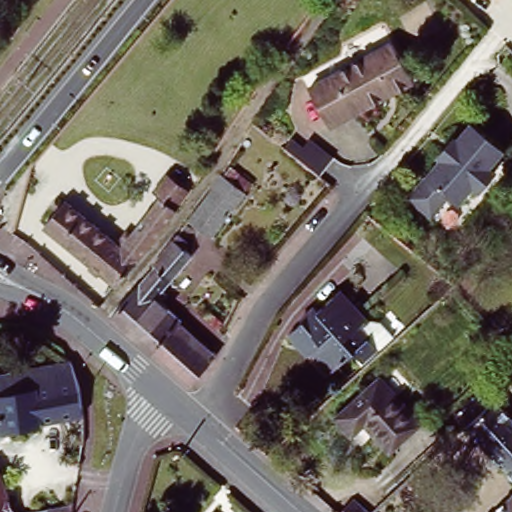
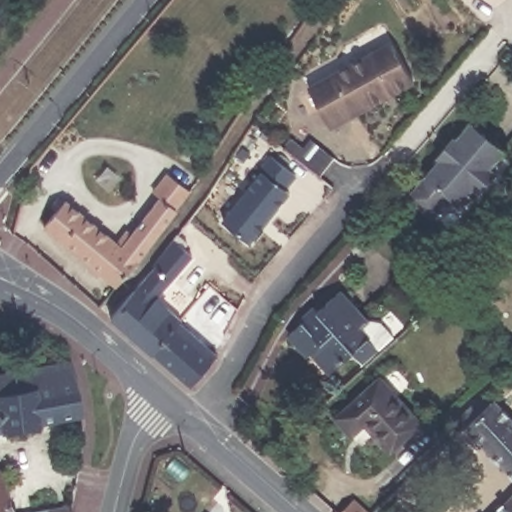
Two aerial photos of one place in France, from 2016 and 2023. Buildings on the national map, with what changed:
unchanged [(412,86),(394,94),(330,118),(315,79),(398,47),(412,86)]
unchanged [(490,167),(495,172),(478,192),(472,187),(457,204),(447,196),(430,215),(407,195),(440,158),(438,156),(455,136),(457,138),(471,123),(504,151),(490,167)]
new [(262,171),(259,170),(270,156),(294,176),(284,188),(289,192),(249,241),(222,220),(262,171)]
demolished [(184,231),(207,201),(223,175),(247,194),(205,248),(184,231)]
unchanged [(40,226),(53,210),(49,206),(55,199),(59,203),(60,201),(109,241),(112,236),(121,235),(124,238),(155,198),(154,196),(165,181),(184,196),(172,211),(114,287),(40,226)]
unchanged [(155,268),(153,266),(174,240),(195,257),(165,291),(170,296),(164,303),(184,321),(182,323),(212,350),(220,356),(192,388),(112,317),(155,268)]
unchanged [(325,379),(301,352),(292,354),(282,343),(296,331),(294,328),(307,316),(308,316),(312,320),(334,300),(359,328),(374,331),(387,346),(359,370),(349,358),(325,379)]
unchanged [(0,439),(0,375),(68,363),(70,366),(77,389),(80,416),(3,430),(5,438),(0,439)]
unchanged [(391,455),(365,427),(350,440),(327,417),(380,375),(422,425),(391,455)]
unchanged [(473,421),(466,414),(487,394),(494,401),(495,400),(512,417),(512,474),(467,428),(473,421)]
unchanged [(0,472),(13,512),(0,512),(0,472)]
unchanged [(350,499),(365,512),(337,512),(350,499)]
unchanged [(511,499),(512,500),(512,512),(497,512),(511,499)]
unchanged [(67,508),(68,512),(23,512),(67,508)]

